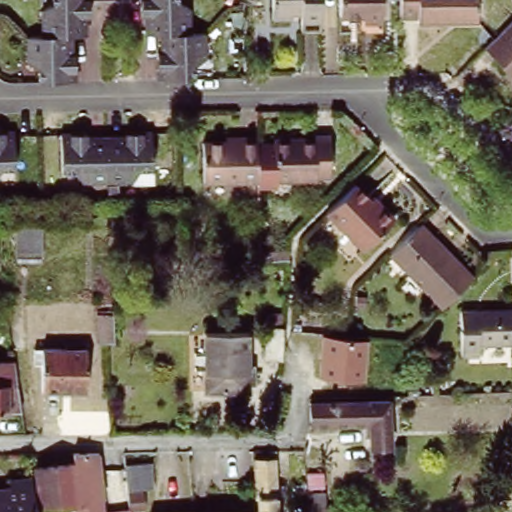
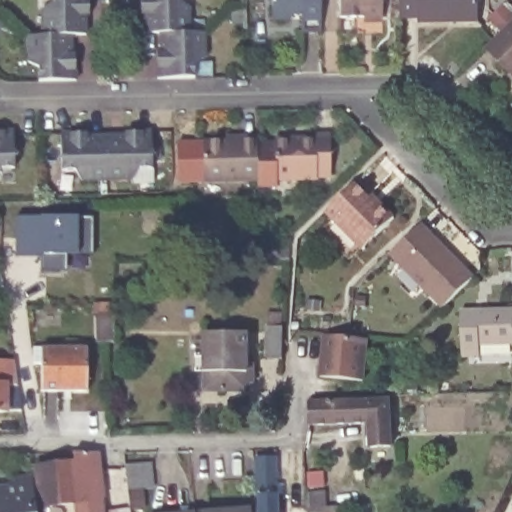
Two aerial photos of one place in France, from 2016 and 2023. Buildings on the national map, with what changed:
unchanged [(79,59),(79,78),(40,79),(40,64),(31,58),(31,33),(46,33),(45,8),(56,1),(56,0),(93,0),(93,7),(94,14),(90,14),(90,31),(74,32),(75,52),(79,52),(79,59)]
unchanged [(165,46),(164,25),(150,26),(150,6),(145,6),(144,0),(189,0),(191,1),(192,25),(206,24),(207,49),(198,55),(198,71),(161,71),(161,54),(161,46),(165,46)]
unchanged [(324,26),(303,27),(303,10),(292,10),(292,15),(274,15),(274,0),(323,0),(324,26)]
unchanged [(382,14),(340,15),(340,0),(381,0),(382,14)]
unchanged [(477,17),(417,18),(417,11),(401,11),(401,0),(476,0),(477,17)]
unchanged [(503,69),(479,45),(510,14),(512,17),(512,75),(510,77),(503,69)]
unchanged [(127,134),(127,130),(136,129),(152,129),(153,166),(140,166),(131,177),(108,178),(86,179),(78,169),(64,169),(62,132),(79,131),(88,131),(89,136),(107,135),(127,134)]
unchanged [(314,131),(330,131),(332,171),(317,171),(317,174),(276,176),(274,135),(314,133),(314,131)]
unchanged [(14,170),(1,170),(0,171),(0,134),(13,133),(14,170)]
unchanged [(254,181),(201,182),(199,144),(236,143),(236,138),(252,137),(254,181)]
new [(275,140),(276,176),(277,186),(255,187),(254,181),(252,141),(275,140)]
unchanged [(377,203),(392,217),(362,247),(324,210),(352,182),(376,204),(377,203)]
demolished [(43,215),(43,256),(17,256),(18,215),(43,215)]
new [(91,255),(76,254),(66,254),(67,271),(40,271),(41,255),(15,256),(16,216),(42,216),(77,216),(92,217),(91,255)]
unchanged [(444,304),(392,252),(422,222),(475,275),(444,304)]
unchanged [(481,340),(482,351),(464,352),(462,308),(512,306),(512,339),(481,340)]
unchanged [(113,327),(114,340),(102,340),(102,312),(113,312),(113,327)]
unchanged [(282,323),(281,354),(265,354),(265,323),(282,323)]
unchanged [(246,362),(252,362),(252,388),(204,389),(204,332),(246,332),(246,362)]
unchanged [(367,337),(366,381),(318,379),(322,333),(367,337)]
unchanged [(90,388),(45,387),(45,363),(35,363),(35,346),(91,347),(90,388)]
unchanged [(0,409),(0,358),(17,357),(25,408),(0,409)]
unchanged [(362,448),(362,422),(304,423),(303,402),(382,400),(381,447),(362,448)]
unchanged [(32,463),(100,452),(108,507),(127,506),(127,465),(151,464),(156,502),(133,512),(71,512),(71,508),(40,512),(0,512),(0,487),(34,480),(32,463)]
unchanged [(259,512),(259,509),(257,458),(277,458),(279,512),(259,512)]
unchanged [(322,485),(306,485),(305,470),(322,470),(322,485)]
unchanged [(324,489),(325,512),(308,512),(307,489),(324,489)]
unchanged [(232,512),(259,509),(259,512),(232,512)]

